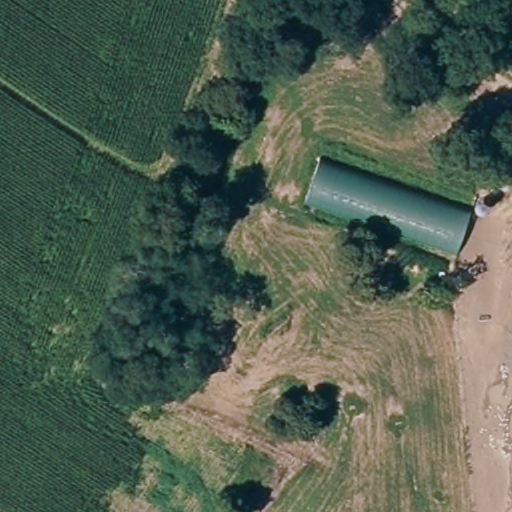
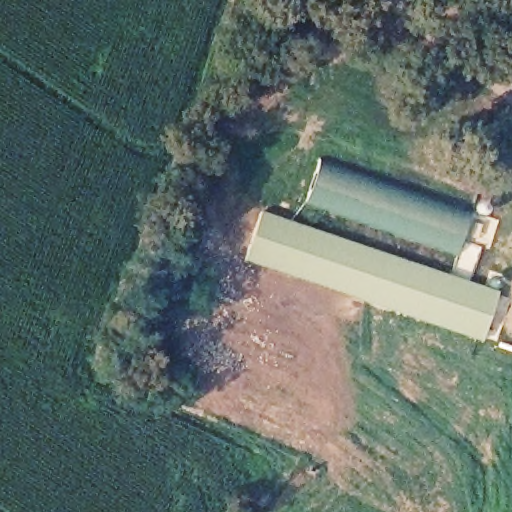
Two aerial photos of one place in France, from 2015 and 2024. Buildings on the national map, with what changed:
unchanged [(307,202),(321,158),(472,213),(457,254),(307,202)]
new [(499,290),(482,339),(244,260),(261,209),(499,290)]

